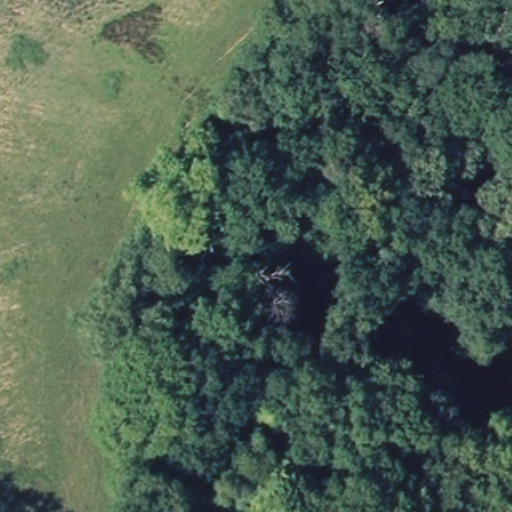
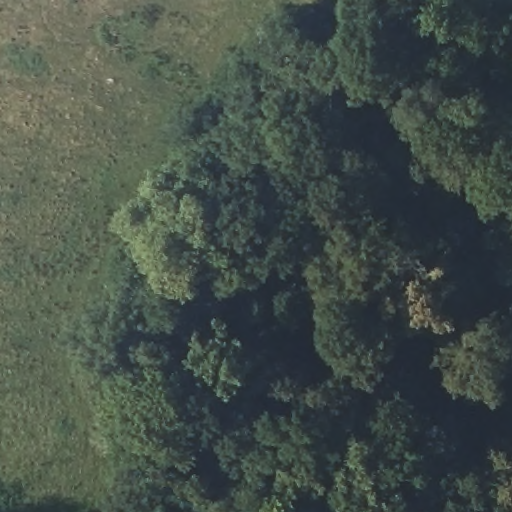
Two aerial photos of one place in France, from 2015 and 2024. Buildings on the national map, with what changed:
[]

